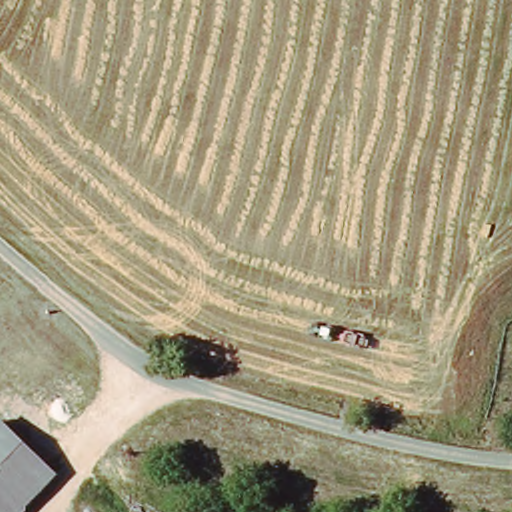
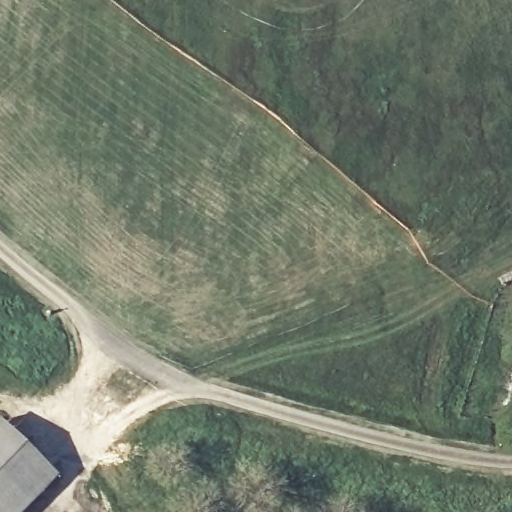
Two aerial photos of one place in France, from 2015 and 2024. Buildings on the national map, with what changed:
unchanged [(0,424),(56,480),(24,512),(0,512),(0,424)]

